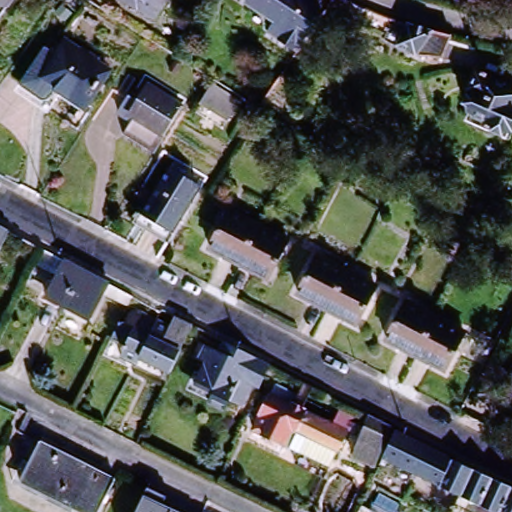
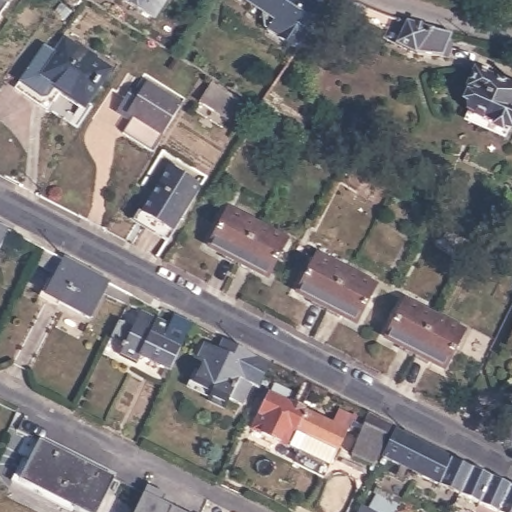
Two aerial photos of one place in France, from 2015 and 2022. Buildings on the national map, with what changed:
unchanged [(2,29),(0,28),(0,0),(22,0),(2,29)]
unchanged [(129,9),(115,0),(135,0),(129,9)]
unchanged [(248,1),(247,0),(248,0),(248,1)]
unchanged [(297,48),(267,29),(277,12),(258,0),(305,0),(305,1),(321,11),(297,48)]
unchanged [(396,20),(438,32),(430,53),(386,42),(396,20)]
unchanged [(69,93),(65,97),(45,84),(70,46),(83,54),(85,49),(100,59),(97,63),(111,72),(90,107),(69,93)]
unchanged [(481,100),(471,96),(480,77),(512,92),(512,135),(473,118),(481,100)]
unchanged [(169,130),(134,109),(141,96),(150,82),(185,104),(169,130)]
unchanged [(199,107),(210,89),(236,104),(225,122),(199,107)]
unchanged [(141,96),(134,109),(169,130),(156,151),(125,131),(132,119),(120,111),(132,91),(141,96)]
unchanged [(135,225),(169,169),(200,187),(165,243),(135,225)]
unchanged [(227,211),(257,227),(237,265),(207,249),(227,211)]
unchanged [(257,227),(287,242),(267,280),(237,265),(257,227)]
unchanged [(0,248),(0,229),(7,233),(0,248)]
unchanged [(317,258),(346,273),(327,311),(298,296),(317,258)]
unchanged [(100,300),(87,322),(45,299),(64,262),(107,286),(127,296),(120,310),(100,300)]
unchanged [(346,273),(375,288),(356,326),(327,311),(346,273)]
unchanged [(405,305),(435,321),(416,357),(386,342),(405,305)]
unchanged [(153,322),(136,356),(131,365),(114,356),(119,345),(107,339),(115,323),(126,328),(135,312),(153,322)]
unchanged [(136,356),(153,322),(165,328),(172,315),(190,324),(168,371),(136,356)]
unchanged [(435,321),(465,336),(446,372),(416,357),(435,321)]
unchanged [(245,378),(250,381),(240,402),(228,397),(224,406),(206,398),(210,389),(192,381),(203,359),(194,355),(200,342),(218,351),(224,341),(256,357),(245,378)]
unchanged [(252,375),(257,365),(267,370),(262,379),(252,375)]
unchanged [(302,442),(292,437),(289,444),(252,426),(270,391),(345,428),(330,457),(322,474),(294,460),(302,442)]
unchanged [(353,456),(366,427),(372,415),(392,426),(387,437),(373,466),(353,456)]
unchanged [(460,495),(440,486),(442,481),(385,454),(395,431),(453,458),(473,468),(494,477),(512,487),(512,512),(495,512),(480,505),(460,495)]
unchanged [(70,505),(17,478),(37,439),(110,476),(91,512),(77,512),(69,508),(70,505)]
unchanged [(167,491),(164,498),(191,512),(132,512),(148,481),(167,491)]
unchanged [(452,510),(458,512),(426,512),(432,500),(452,510)]

